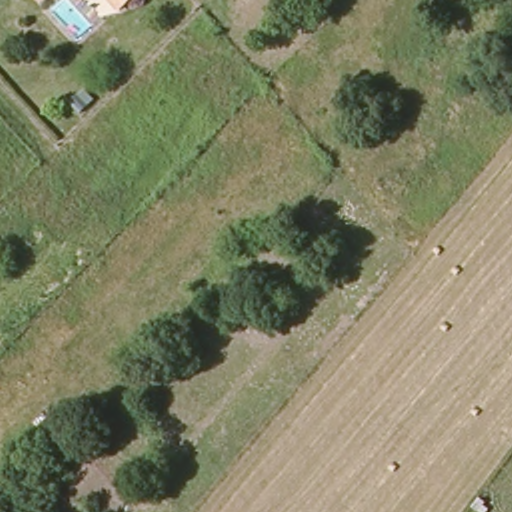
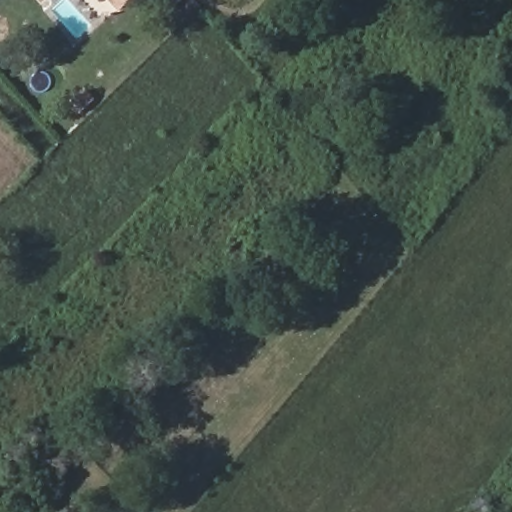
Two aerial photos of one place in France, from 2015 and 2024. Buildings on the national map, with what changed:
unchanged [(107,0),(136,0),(119,15),(107,0)]

